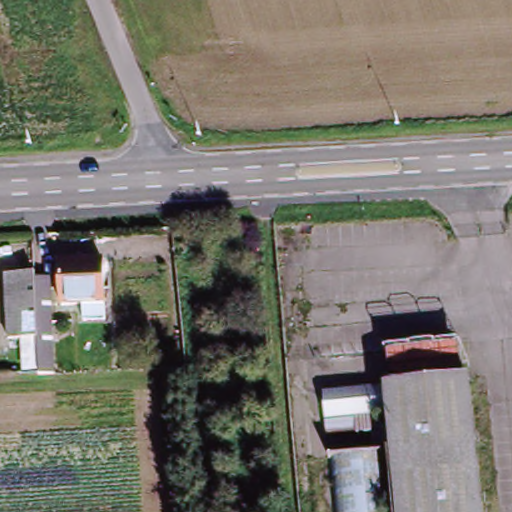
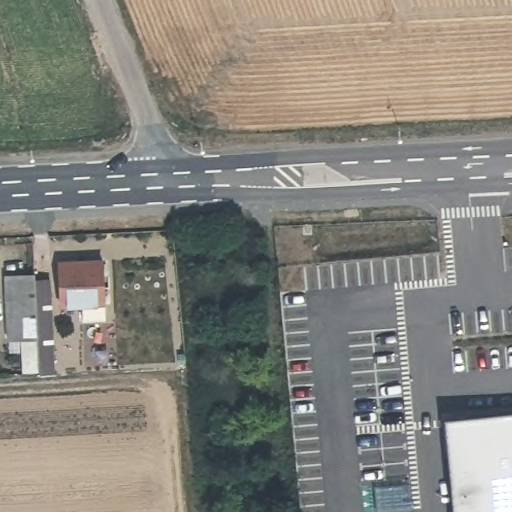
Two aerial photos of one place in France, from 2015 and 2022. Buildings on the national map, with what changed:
unchanged [(89,289),(79,290),(76,256),(112,254),(115,287),(112,287),(114,303),(89,305),(89,289)]
unchanged [(61,371),(49,371),(48,366),(46,337),(15,340),(10,275),(41,274),(42,281),(56,281),(59,320),(59,322),(61,365),(61,371)]
demolished [(456,381),(461,380),(475,512),(328,512),(323,461),(363,457),(360,428),(385,426),(384,420),(317,427),(315,392),(382,386),(424,383),(456,381)]
new [(512,412),(512,512),(454,512),(444,418),(512,412)]

